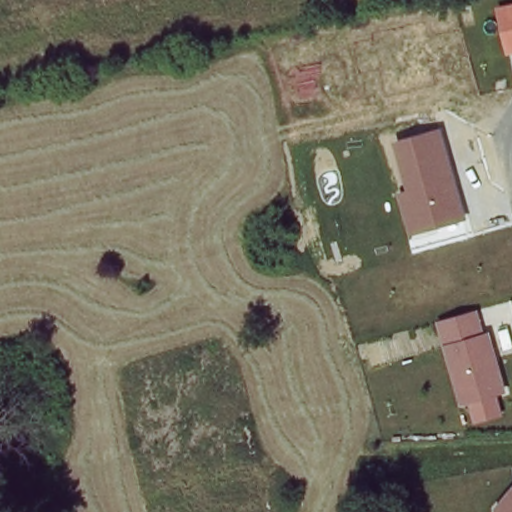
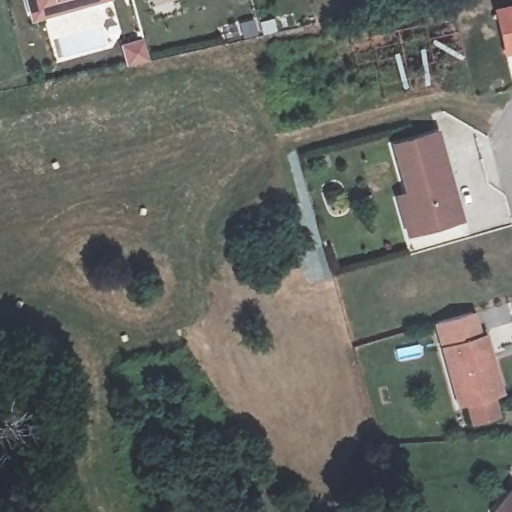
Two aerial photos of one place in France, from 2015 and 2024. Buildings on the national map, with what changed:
new [(30,21),(24,0),(110,0),(30,21)]
unchanged [(504,57),(493,8),(512,4),(512,55),(504,57)]
new [(143,43),(148,61),(128,65),(123,47),(143,43)]
unchanged [(408,239),(396,198),(408,193),(395,143),(439,128),(468,222),(408,239)]
unchanged [(461,408),(434,325),(475,311),(505,396),(461,408)]
unchanged [(494,512),(493,508),(512,487),(512,512),(494,512)]

